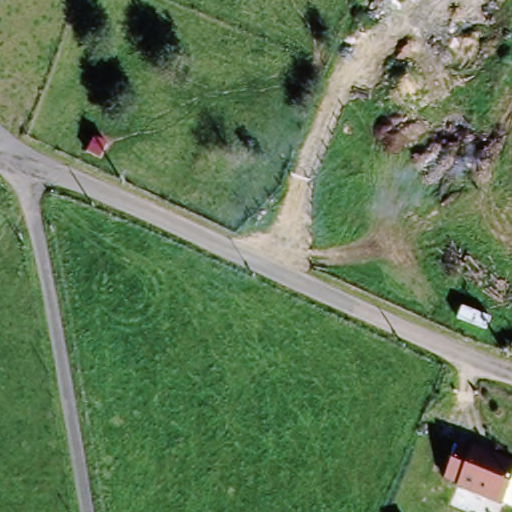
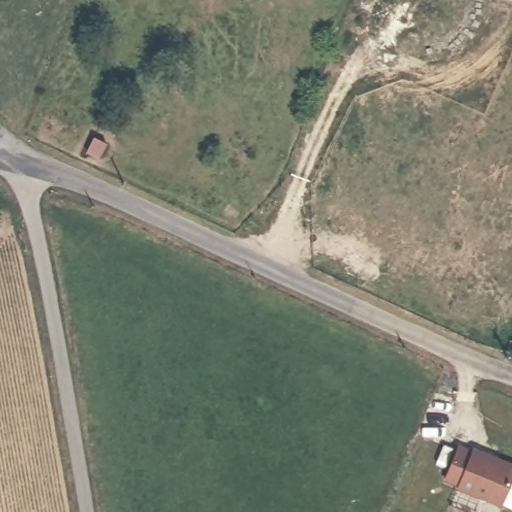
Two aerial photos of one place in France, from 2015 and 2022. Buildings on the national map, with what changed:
unchanged [(458,443),(512,465),(512,476),(498,508),(441,487),(458,443)]

